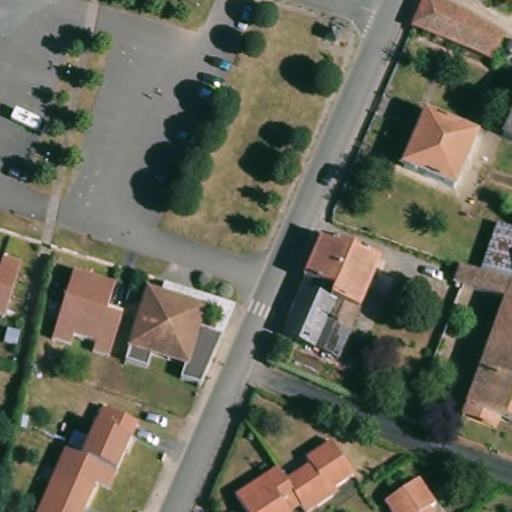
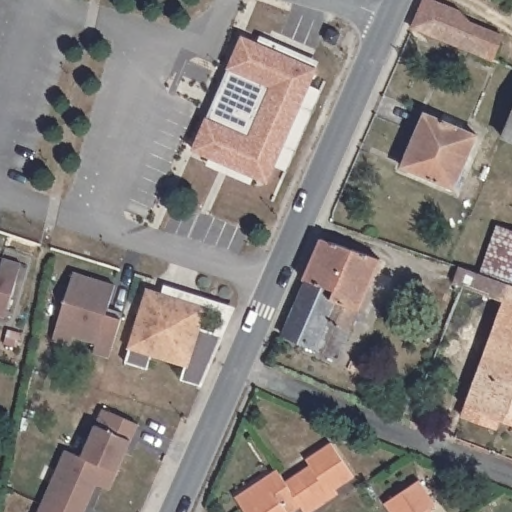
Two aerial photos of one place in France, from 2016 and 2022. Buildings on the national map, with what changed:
unchanged [(454,10),(466,22),(504,39),(497,65),(440,40),(412,30),(407,27),(409,25),(420,0),(429,0),(454,10)]
unchanged [(337,32),(333,43),(325,40),(329,30),(337,32)]
new [(206,120),(228,69),(241,38),(256,45),(258,37),(267,41),(286,49),(318,61),(315,70),(308,85),(273,166),(267,182),(254,177),(251,185),(206,166),(210,158),(193,151),(206,120)]
new [(308,85),(320,90),(286,171),(273,166),(308,85)]
unchanged [(452,190),(403,169),(426,116),(475,138),(452,190)]
unchanged [(512,120),(512,148),(503,145),(512,120)]
unchanged [(505,307),(480,298),(485,280),(487,280),(503,232),(504,231),(512,234),(512,430),(498,425),(495,433),(462,422),(465,413),(505,307)]
unchanged [(321,244),(380,265),(340,362),(285,340),(308,285),(304,283),(321,244)]
unchanged [(0,315),(0,256),(16,261),(0,315)]
unchanged [(106,359),(90,354),(92,345),(70,337),(67,347),(49,341),(70,273),(111,286),(102,315),(118,320),(106,359)]
unchanged [(174,381),(178,367),(143,357),(139,371),(116,364),(121,350),(120,350),(138,289),(160,296),(162,289),(182,295),(180,302),(197,307),(191,328),(215,336),(192,387),(174,381)]
unchanged [(75,458),(96,410),(131,425),(103,490),(90,485),(78,512),(33,512),(59,451),(75,458)]
unchanged [(277,475),(286,487),(310,472),(307,465),(332,448),(355,482),(332,498),(335,502),(319,512),(302,512),(243,512),(236,502),(277,475)]
unchanged [(416,486),(433,510),(431,512),(386,512),(383,508),(416,486)]

